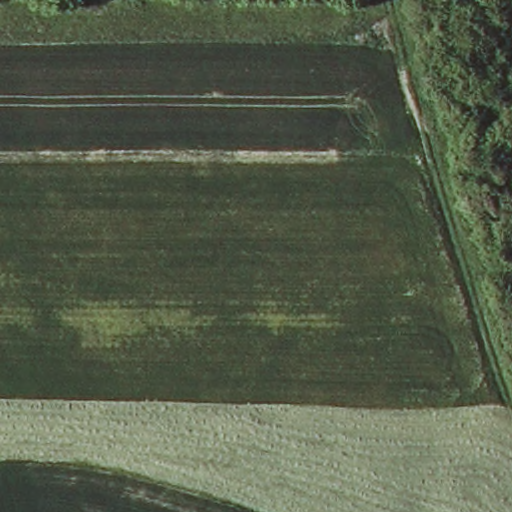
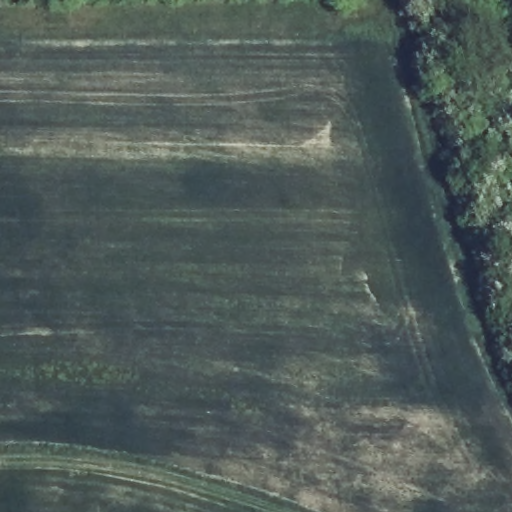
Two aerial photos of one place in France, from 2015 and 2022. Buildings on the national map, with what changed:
[]

